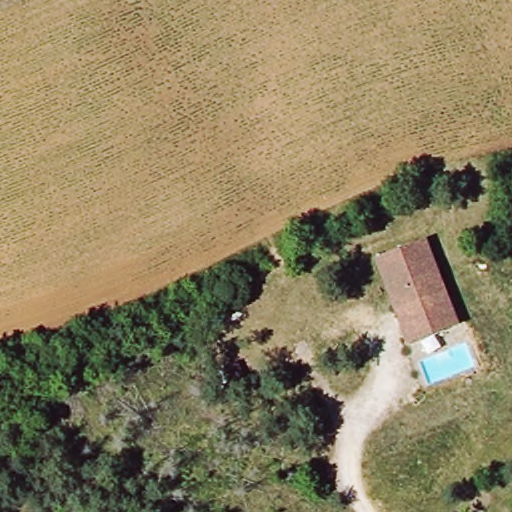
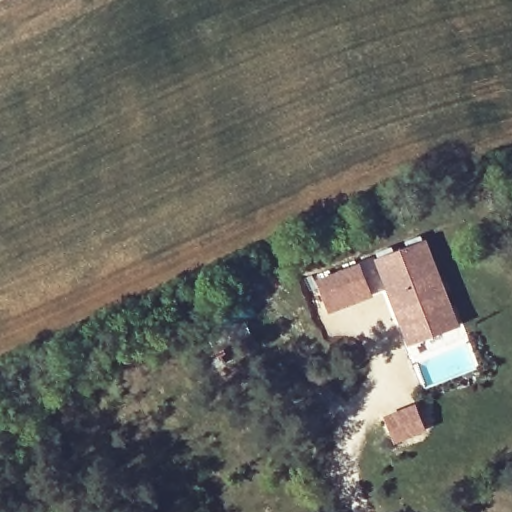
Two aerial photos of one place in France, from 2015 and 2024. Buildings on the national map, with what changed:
unchanged [(421,239),(456,326),(408,345),(373,258),(421,239)]
new [(360,262),(374,296),(328,314),(315,280),(360,262)]

